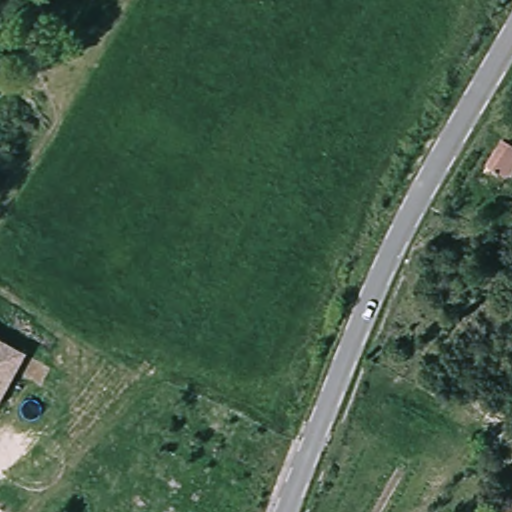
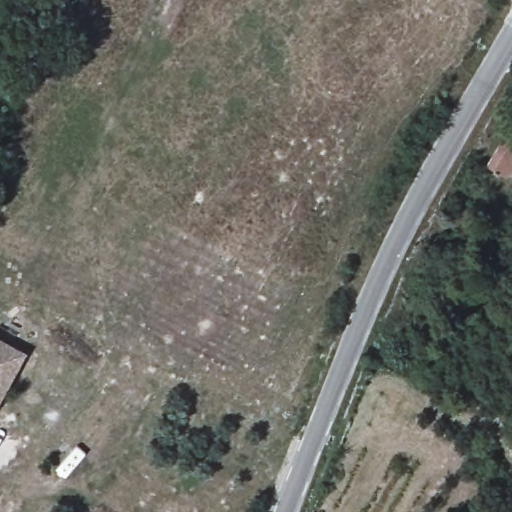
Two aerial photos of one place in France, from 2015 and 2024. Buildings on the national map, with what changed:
unchanged [(512,143),(512,166),(508,175),(491,168),(504,140),(512,143)]
unchanged [(0,401),(0,338),(26,352),(0,401)]

